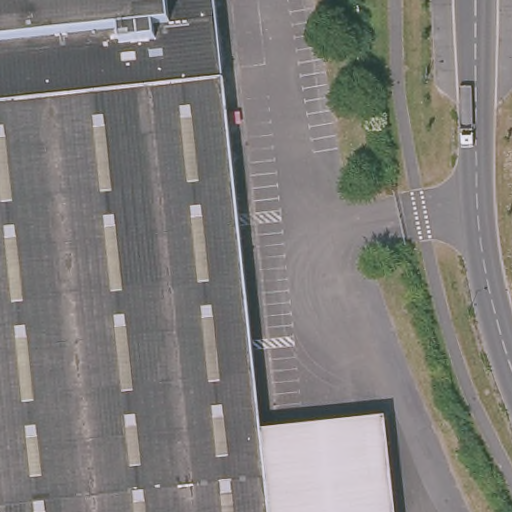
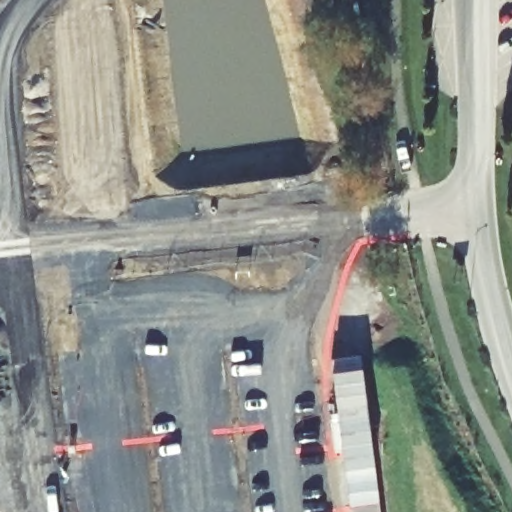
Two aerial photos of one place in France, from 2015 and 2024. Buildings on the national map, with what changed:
demolished [(387,419),(396,512),(0,512),(0,0),(216,0),(262,431),(387,419)]
new [(363,368),(375,464),(381,512),(350,512),(345,468),(335,371),(334,359),(362,356),(363,368)]

